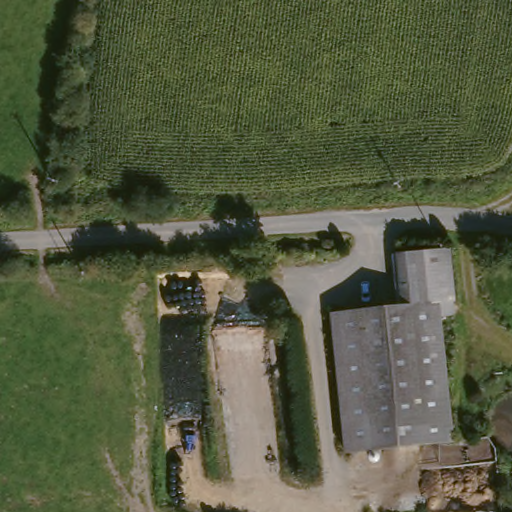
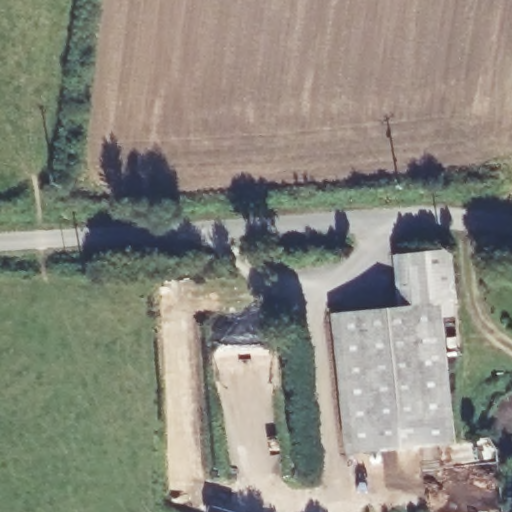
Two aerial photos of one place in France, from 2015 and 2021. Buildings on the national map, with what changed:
unchanged [(453,304),(437,305),(448,446),(341,457),(328,316),(395,309),(392,257),(449,253),(453,304)]

